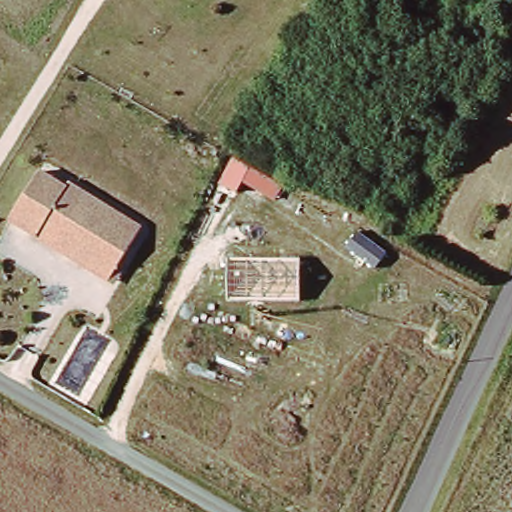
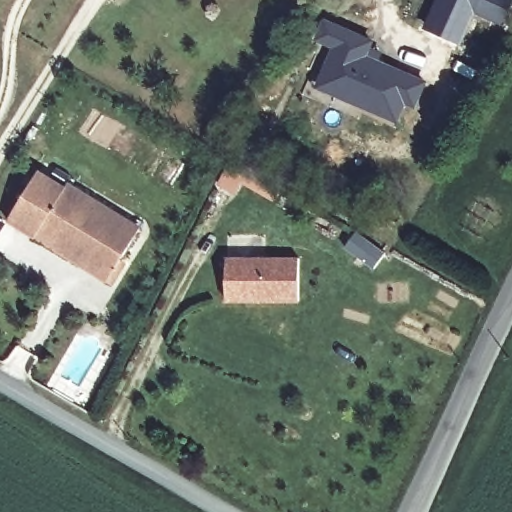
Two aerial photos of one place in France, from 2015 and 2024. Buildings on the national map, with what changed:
new [(431,26),(442,0),(511,0),(500,21),(473,10),(460,40),(431,26)]
new [(373,42),(367,56),(428,82),(415,109),(405,106),(398,123),(315,86),(332,47),(315,38),(325,19),(373,42)]
new [(229,160),(280,187),(272,200),(240,182),(233,194),(217,187),(229,160)]
unchanged [(37,240),(10,224),(40,174),(67,190),(68,186),(142,229),(117,270),(110,283),(37,240)]
new [(357,234),(387,255),(375,270),(347,249),(357,234)]
unchanged [(300,301),(228,300),(227,258),(300,258),(300,301)]

